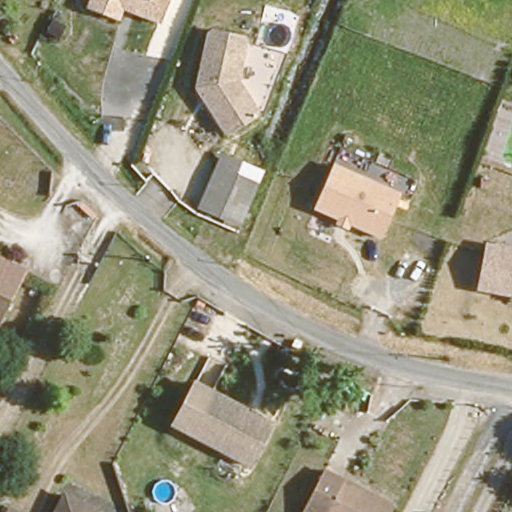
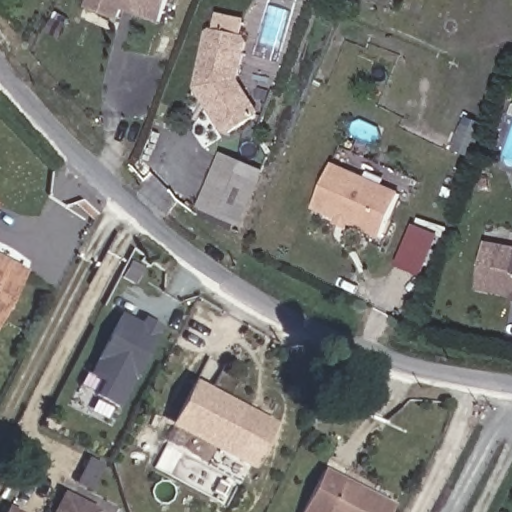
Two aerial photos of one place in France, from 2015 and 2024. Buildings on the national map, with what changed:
unchanged [(161,23),(124,10),(120,21),(87,8),(89,0),(170,0),(161,23)]
unchanged [(226,137),(195,90),(206,29),(248,36),(241,78),(262,115),(226,137)]
unchanged [(246,161),(241,175),(261,184),(241,228),(195,212),(222,152),(246,161)]
unchanged [(383,239),(312,211),(333,164),(401,192),(383,239)]
unchanged [(478,292),(487,242),(512,247),(512,298),(478,292)]
unchanged [(4,312),(0,318),(0,255),(25,267),(4,312)]
new [(140,322),(143,316),(164,325),(121,408),(95,395),(101,379),(87,374),(121,312),(140,322)]
unchanged [(216,452),(219,447),(175,423),(195,385),(270,426),(251,464),(247,470),(216,452)]
unchanged [(300,512),(322,467),(392,505),(389,512),(300,512)]
unchanged [(75,512),(54,512),(59,502),(75,512)]
unchanged [(5,512),(8,506),(20,512),(5,512)]

